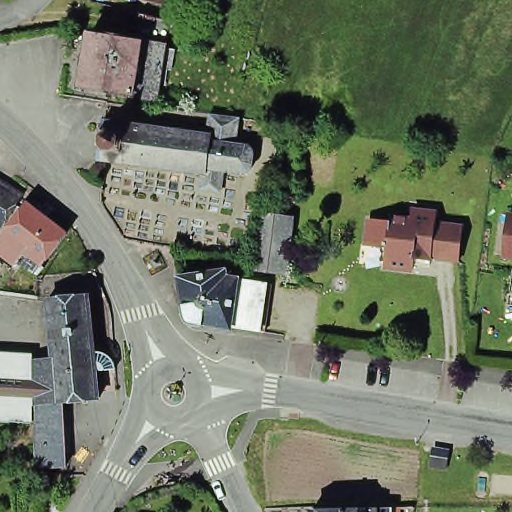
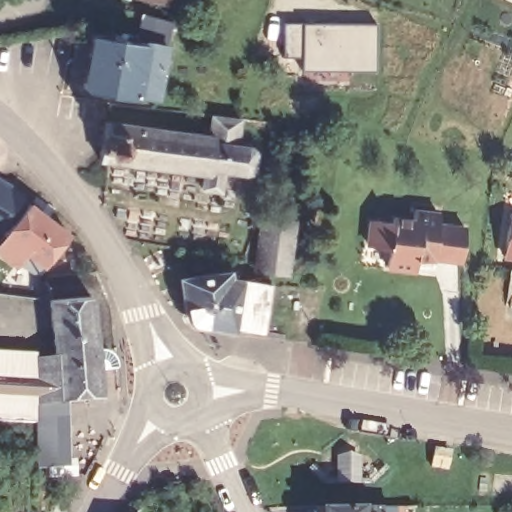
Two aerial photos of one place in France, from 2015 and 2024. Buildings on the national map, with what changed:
unchanged [(140,0),(174,0),(172,7),(140,0)]
unchanged [(85,94),(94,38),(139,46),(145,18),(170,25),(175,26),(170,50),(160,105),(85,94)]
new [(379,75),(304,74),(302,61),(284,59),(282,22),(375,25),(379,75)]
unchanged [(205,194),(207,177),(110,166),(102,164),(110,126),(212,140),(215,118),(242,122),(244,122),(241,147),(252,149),(259,156),(257,172),(252,177),(229,175),(225,197),(205,194)]
unchanged [(0,227),(0,178),(29,195),(7,232),(0,227)]
unchanged [(0,245),(9,234),(34,202),(73,233),(47,266),(30,252),(20,264),(0,249),(0,245)]
unchanged [(290,272),(262,268),(267,216),(297,219),(290,272)]
unchanged [(410,274),(410,277),(382,274),(384,256),(363,254),(366,229),(387,231),(387,226),(407,228),(408,218),(432,221),(431,232),(460,235),(455,270),(427,266),(427,268),(427,275),(410,274)]
unchanged [(188,283),(235,275),(235,281),(247,282),(241,331),(240,333),(204,327),(193,319),(188,283)]
unchanged [(276,287),(271,335),(241,331),(247,282),(276,287)]
unchanged [(122,375),(102,377),(105,403),(64,406),(61,365),(56,305),(95,300),(100,356),(108,356),(122,366),(122,375)]
unchanged [(73,467),(42,470),(40,436),(40,427),(35,427),(0,425),(0,364),(4,364),(4,357),(39,358),(39,366),(61,365),(64,406),(65,427),(70,426),(73,467)]
unchanged [(370,506),(396,506),(396,512),(317,512),(370,506)]

